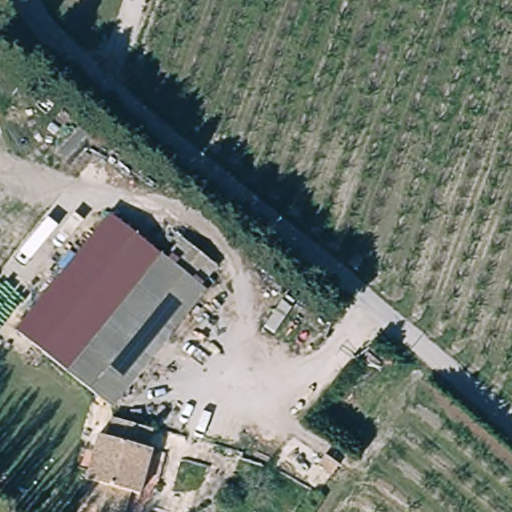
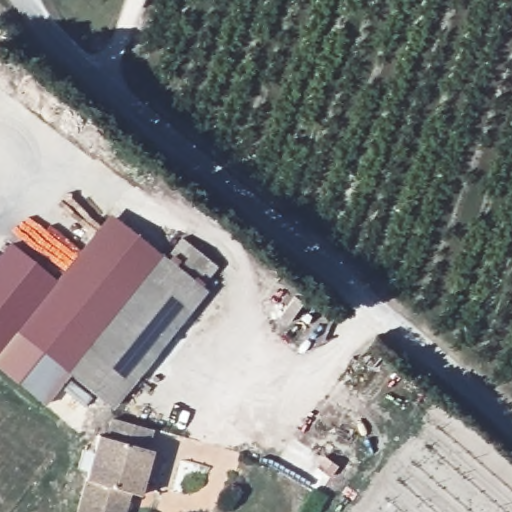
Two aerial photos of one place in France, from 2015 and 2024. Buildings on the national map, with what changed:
unchanged [(120,409),(99,391),(75,372),(29,337),(20,330),(92,234),(108,212),(162,253),(167,245),(173,248),(187,227),(224,256),(209,279),(214,283),(190,315),(120,409)]
new [(57,281),(20,330),(29,337),(75,372),(99,391),(120,409),(117,413),(70,375),(45,407),(0,371),(0,254),(10,243),(57,281)]
unchanged [(112,443),(117,422),(154,433),(149,453),(155,455),(147,499),(133,496),(129,512),(82,512),(100,439),(112,443)]
unchanged [(347,464),(361,474),(351,488),(336,476),(347,464)]

